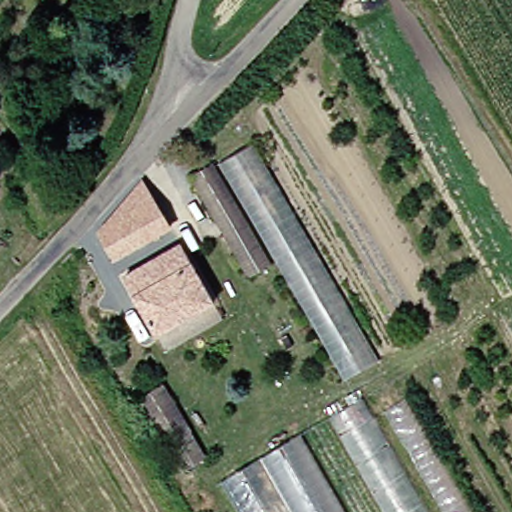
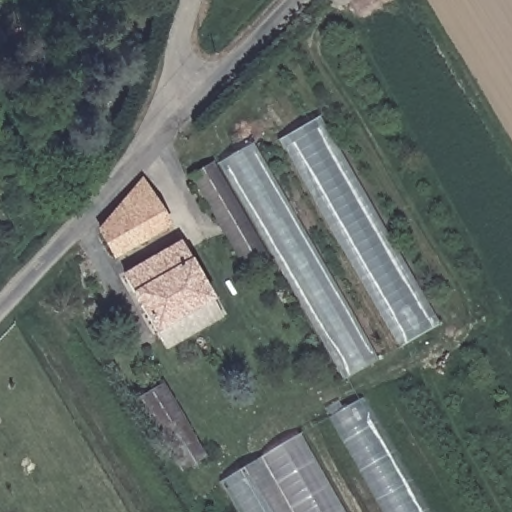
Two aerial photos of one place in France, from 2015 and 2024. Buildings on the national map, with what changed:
new [(8,39),(0,44),(0,27),(8,39)]
new [(285,138),(320,119),(436,327),(401,345),(285,138)]
unchanged [(251,141),(380,359),(345,379),(278,261),(218,161),(251,141)]
unchanged [(255,274),(195,174),(218,161),(278,261),(255,274)]
unchanged [(149,182),(176,229),(140,249),(123,259),(105,234),(119,217),(149,182)]
unchanged [(163,336),(131,278),(186,247),(219,305),(163,336)]
unchanged [(228,319),(172,350),(163,336),(219,305),(228,319)]
unchanged [(188,469),(143,399),(168,384),(214,453),(188,469)]
unchanged [(433,512),(391,512),(333,413),(366,396),(433,512)]
unchanged [(306,439),(348,512),(247,512),(228,480),(306,439)]

